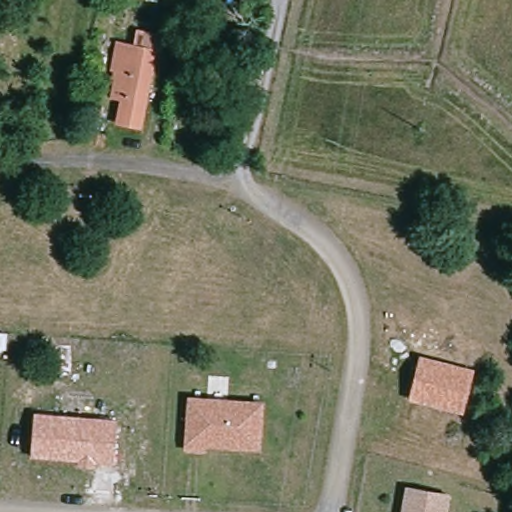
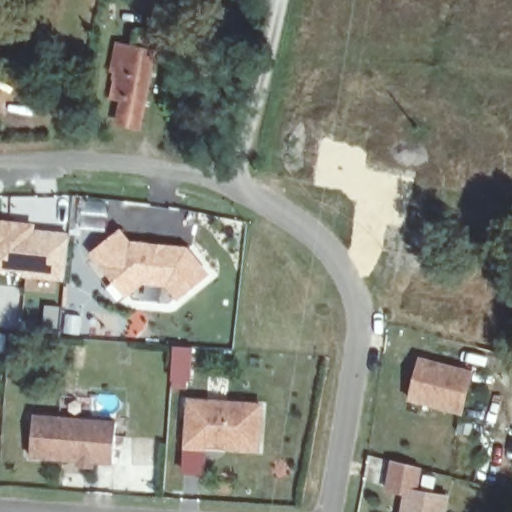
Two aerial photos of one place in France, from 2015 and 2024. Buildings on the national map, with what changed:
unchanged [(160,48),(150,54),(136,121),(114,115),(121,80),(106,75),(110,54),(126,56),(131,26),(163,31),(160,48)]
new [(24,272),(0,270),(0,220),(35,223),(35,230),(69,232),(62,281),(24,278),(24,272)]
new [(176,301),(167,287),(142,285),(125,298),(89,253),(120,229),(130,240),(187,247),(211,273),(176,301)]
unchanged [(419,356),(473,368),(463,415),(408,401),(419,356)]
unchanged [(261,455),(227,453),(228,450),(207,449),(206,455),(182,453),(187,399),(263,402),(261,455)]
unchanged [(116,420),(113,464),(96,463),(95,468),(77,467),(77,461),(30,457),(33,413),(116,420)]
new [(385,490),(391,459),(421,468),(417,491),(403,489),(403,493),(385,490)]
unchanged [(450,495),(447,512),(401,512),(403,489),(450,495)]

